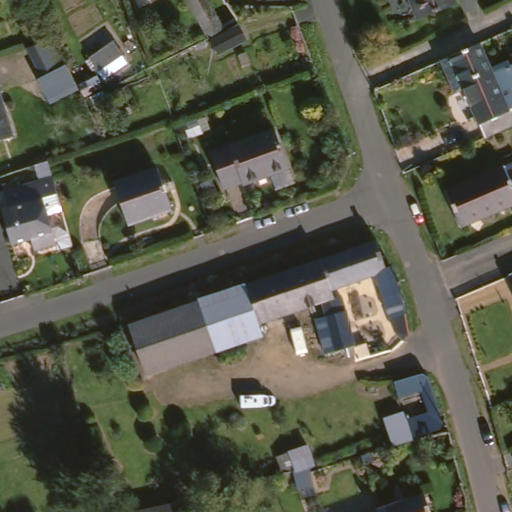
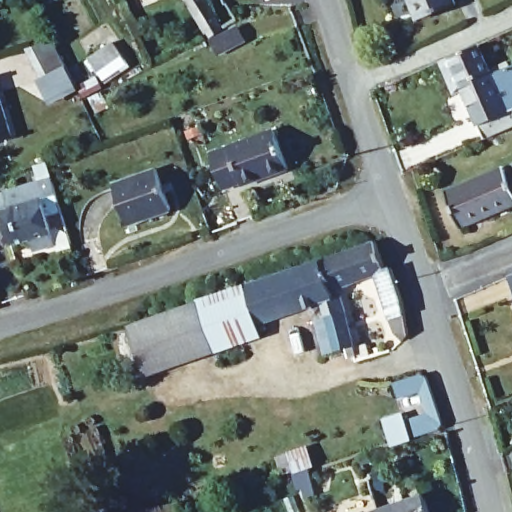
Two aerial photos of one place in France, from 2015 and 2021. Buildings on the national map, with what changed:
unchanged [(208,25),(206,22),(199,10),(194,0),(214,0),(230,29),(241,21),(250,35),(223,49),(217,37),(215,38),(208,25)]
unchanged [(424,16),(418,0),(463,0),(464,3),(424,16)]
unchanged [(445,58),(457,53),(486,39),(499,70),(512,65),(512,126),(491,134),(469,81),(457,86),(445,58)]
unchanged [(35,47),(56,40),(64,54),(70,65),(49,76),(35,47)]
unchanged [(93,57),(118,41),(128,58),(103,72),(93,57)]
unchanged [(0,139),(0,72),(2,71),(19,135),(0,139)]
unchanged [(295,166),(249,183),(248,179),(229,187),(215,151),(280,126),(295,166)]
unchanged [(512,167),(512,208),(467,227),(452,191),(512,167)]
unchanged [(122,184),(166,169),(179,210),(136,224),(122,184)]
unchanged [(65,188),(51,192),(64,239),(42,245),(39,234),(20,239),(9,203),(17,201),(13,187),(61,174),(63,181),(65,188)]
unchanged [(386,239),(392,255),(397,267),(403,265),(412,295),(418,321),(419,327),(421,334),(414,343),(410,338),(405,333),(402,329),(400,327),(399,324),(383,276),(340,290),(343,299),(351,296),(369,356),(365,357),(360,359),(357,349),(338,354),(327,322),(337,318),(332,303),(269,324),(259,295),(256,286),(325,261),(386,239)]
unchanged [(274,336),(204,358),(187,304),(254,282),(256,286),(259,295),(269,324),(274,336)]
unchanged [(187,304),(204,358),(139,376),(123,327),(187,304)]
unchanged [(387,413),(409,406),(411,414),(428,411),(424,393),(402,398),(399,379),(432,369),(449,431),(392,446),(387,413)]
unchanged [(312,469),(317,490),(307,493),(304,479),(298,481),(295,468),(312,464),(312,469)]
unchanged [(383,505),(386,504),(431,489),(439,512),(385,512),(383,505)]
unchanged [(182,501),(184,512),(131,512),(182,501)]
unchanged [(383,505),(385,512),(361,512),(383,505)]

